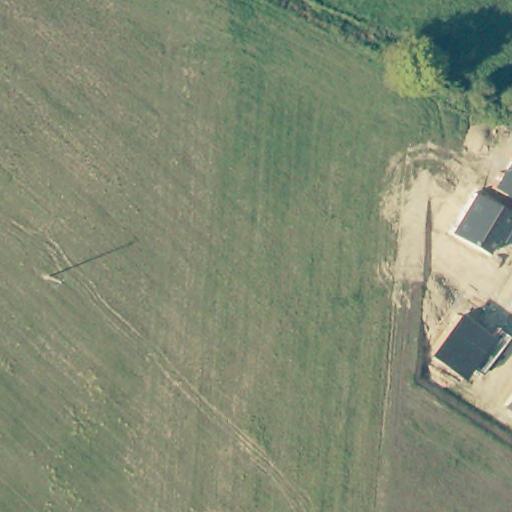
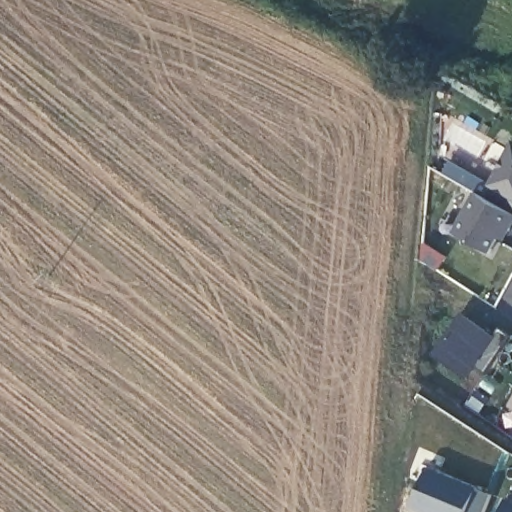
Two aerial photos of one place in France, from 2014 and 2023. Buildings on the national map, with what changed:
unchanged [(512,149),(512,197),(490,185),(512,149)]
unchanged [(476,191),(512,213),(512,221),(491,255),(451,232),(476,191)]
unchanged [(432,354),(461,313),(489,333),(494,325),(508,337),(482,376),(472,368),(464,380),(432,354)]
unchanged [(512,398),(512,411),(506,407),(512,398)]
new [(477,487),(476,489),(491,495),(484,512),(420,512),(410,508),(427,466),(477,487)]
new [(512,502),(512,512),(501,512),(507,500),(512,502)]

